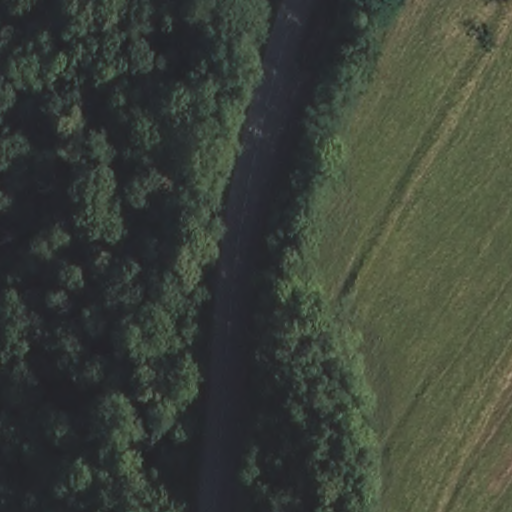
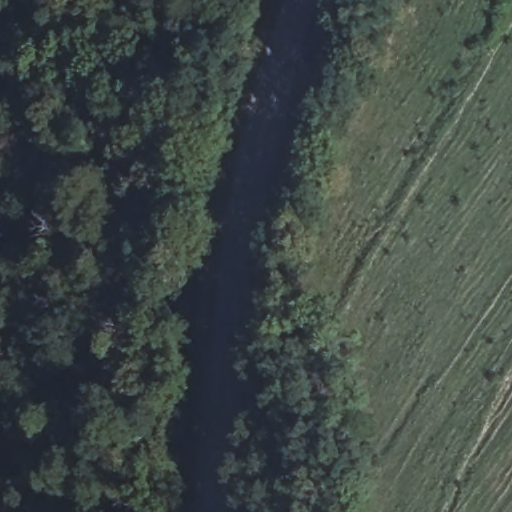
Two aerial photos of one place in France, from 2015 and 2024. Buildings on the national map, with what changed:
[]

